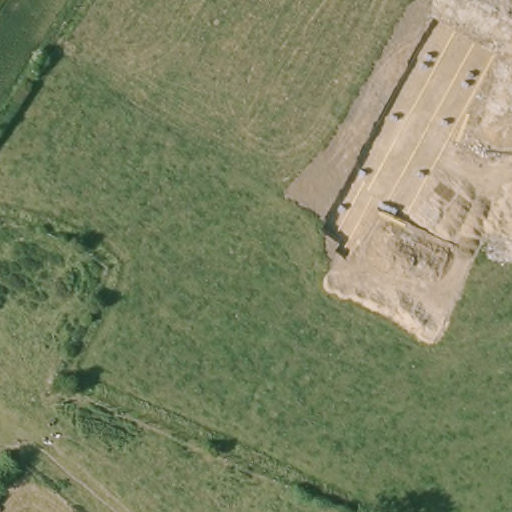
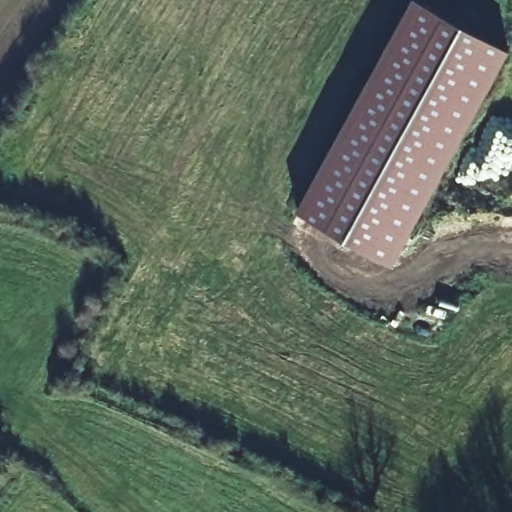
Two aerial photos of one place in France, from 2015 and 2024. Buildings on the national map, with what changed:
new [(392,262),(296,210),(411,0),(420,0),(510,49),(392,262)]

